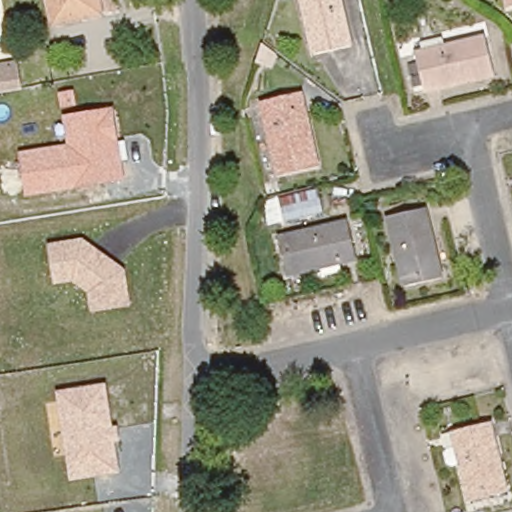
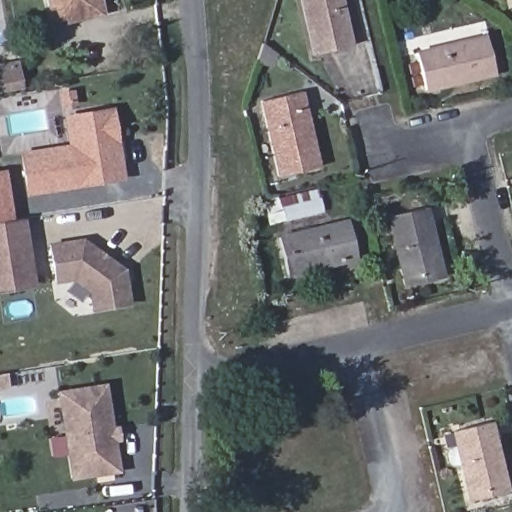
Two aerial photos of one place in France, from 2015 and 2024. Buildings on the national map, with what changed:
unchanged [(53,29),(47,0),(99,0),(103,19),(90,21),(53,29)]
unchanged [(315,49),(304,0),(342,0),(351,41),(315,49)]
unchanged [(503,0),(512,0),(512,5),(505,6),(503,0)]
unchanged [(495,74),(426,90),(417,54),(485,37),(495,74)]
unchanged [(21,88),(12,90),(0,92),(0,64),(17,61),(21,88)]
unchanged [(318,166),(278,175),(262,101),(302,92),(318,166)]
unchanged [(62,115),(112,107),(124,181),(26,197),(20,152),(67,145),(62,115)]
new [(0,170),(6,169),(14,220),(0,222),(0,170)]
unchanged [(322,211),(285,220),(281,199),(317,190),(322,211)]
unchanged [(425,209),(441,277),(405,285),(389,216),(425,209)]
new [(25,218),(37,287),(0,293),(0,222),(14,220),(25,218)]
unchanged [(280,238),(348,221),(357,257),(288,275),(280,238)]
unchanged [(87,292),(72,281),(54,284),(47,244),(82,239),(126,269),(131,306),(90,312),(87,292)]
unchanged [(120,472),(70,480),(56,391),(106,383),(113,426),(118,425),(120,442),(115,443),(120,472)]
unchanged [(507,492),(470,501),(461,464),(452,466),(447,464),(445,454),(448,450),(457,447),(457,445),(453,432),(459,430),(490,423),(507,492)]

